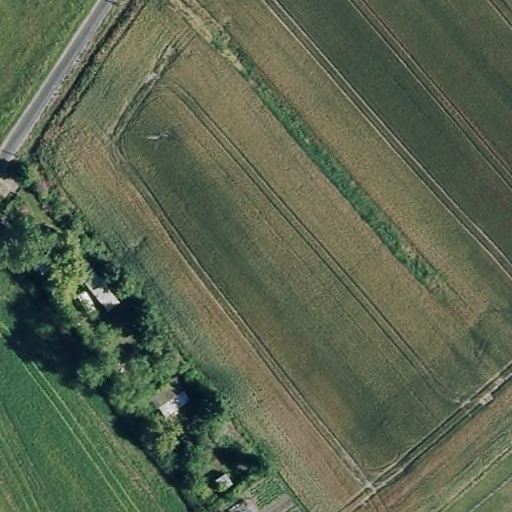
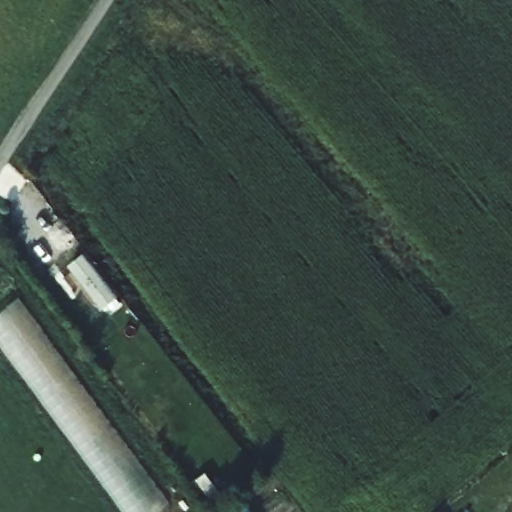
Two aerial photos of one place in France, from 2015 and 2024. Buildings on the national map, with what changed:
new [(0,309),(23,293),(171,500),(155,512),(129,512),(0,337),(0,309)]
unchanged [(173,379),(189,403),(163,421),(147,398),(173,379)]

